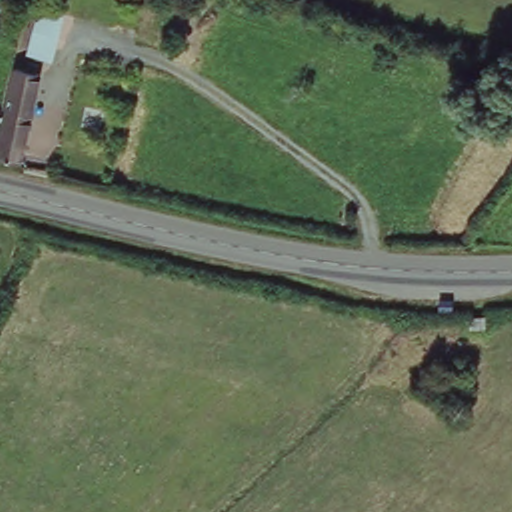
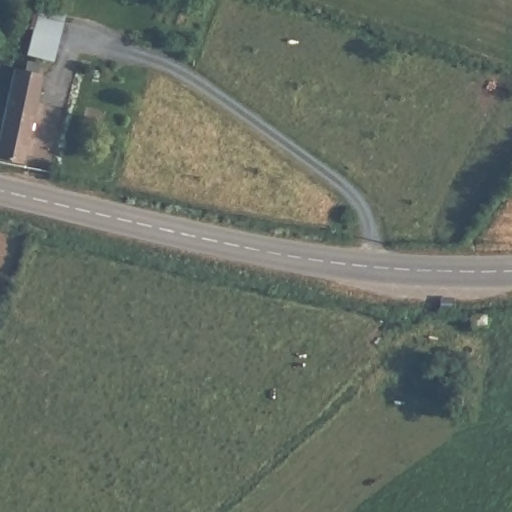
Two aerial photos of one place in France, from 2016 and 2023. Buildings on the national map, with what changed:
unchanged [(6,67),(17,69),(20,60),(34,9),(55,15),(40,64),(35,63),(30,74),(34,76),(30,92),(12,156),(0,154),(0,96),(2,86),(6,67)]

